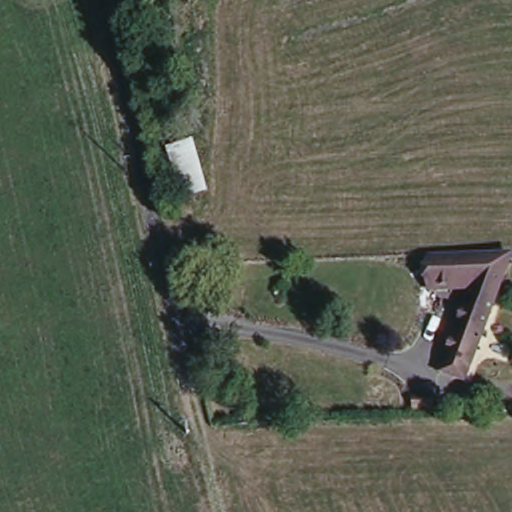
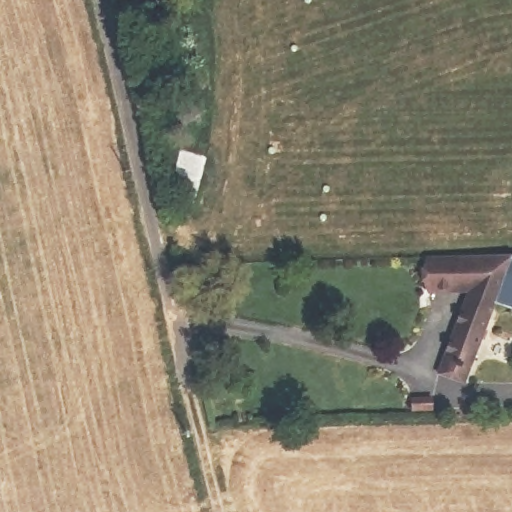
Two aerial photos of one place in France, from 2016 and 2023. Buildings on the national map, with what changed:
unchanged [(464,291),(421,291),(419,251),(512,251),(512,256),(461,381),(432,369),(464,291)]

